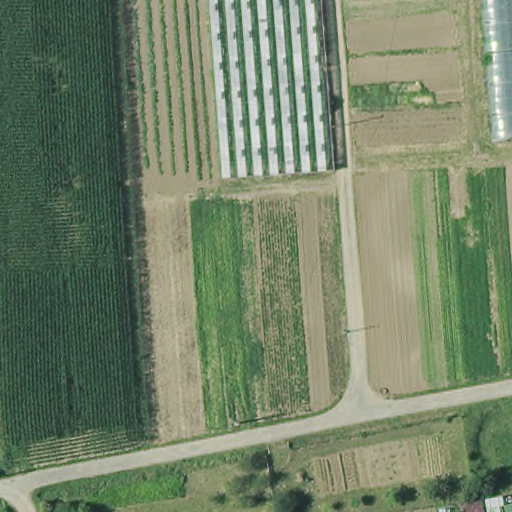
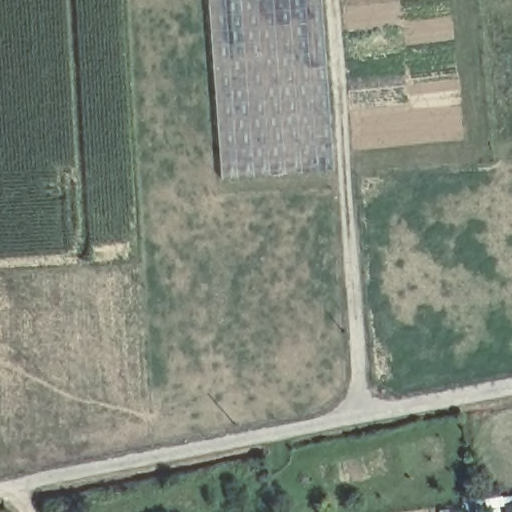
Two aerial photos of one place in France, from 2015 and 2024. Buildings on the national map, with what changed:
unchanged [(320,0),(334,173),(220,182),(217,145),(205,0),(320,0)]
new [(479,0),(512,0),(512,144),(491,147),(479,0)]
demolished [(485,0),(512,0),(512,140),(497,142),(485,0)]
unchanged [(501,505),(496,506),(497,512),(485,512),(483,502),(499,498),(501,505)]
unchanged [(512,512),(503,512),(503,508),(512,506),(512,512)]

